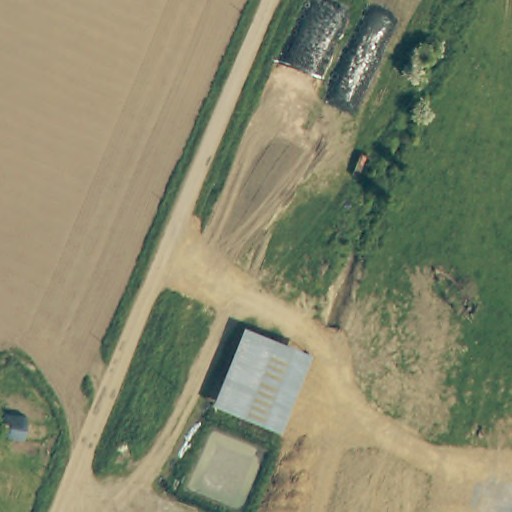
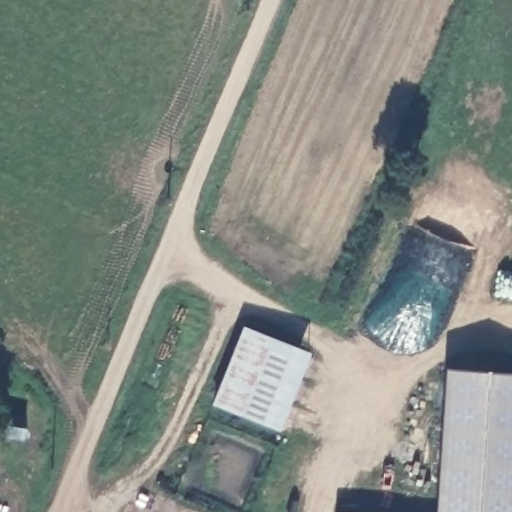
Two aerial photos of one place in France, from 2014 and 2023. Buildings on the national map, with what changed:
unchanged [(242,325),(309,353),(278,432),(210,403),(242,325)]
new [(512,372),(512,512),(436,512),(446,369),(512,372)]
unchanged [(0,436),(0,412),(23,417),(18,440),(0,436)]

